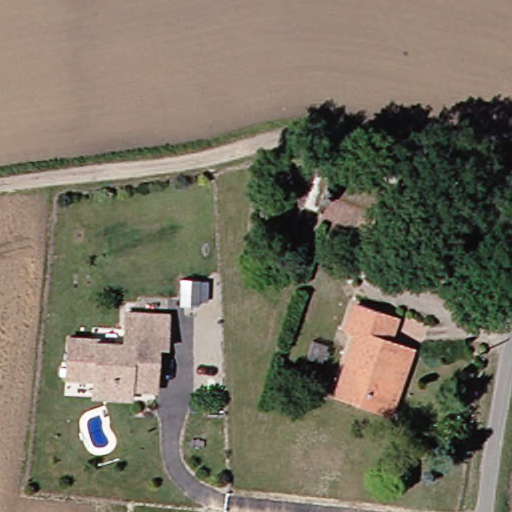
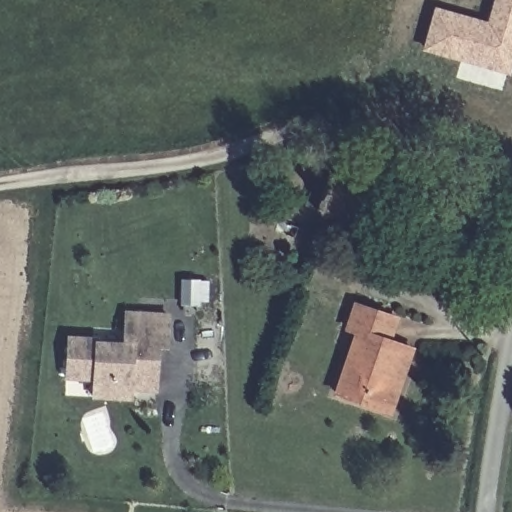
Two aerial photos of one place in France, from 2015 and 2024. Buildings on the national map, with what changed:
new [(421,51),(435,6),(487,21),(493,0),(512,0),(512,66),(509,76),(421,51)]
unchanged [(372,232),(321,213),(333,176),(384,196),(372,232)]
unchanged [(204,283),(203,308),(186,308),(186,285),(204,283)]
unchanged [(392,411),(384,407),(334,387),(356,326),(347,320),(354,300),(393,314),(388,332),(400,336),(413,342),(392,411)]
unchanged [(91,396),(92,377),(66,376),(66,336),(95,337),(95,342),(123,341),(123,312),(165,315),(166,346),(157,346),(155,390),(129,388),(129,398),(91,396)]

